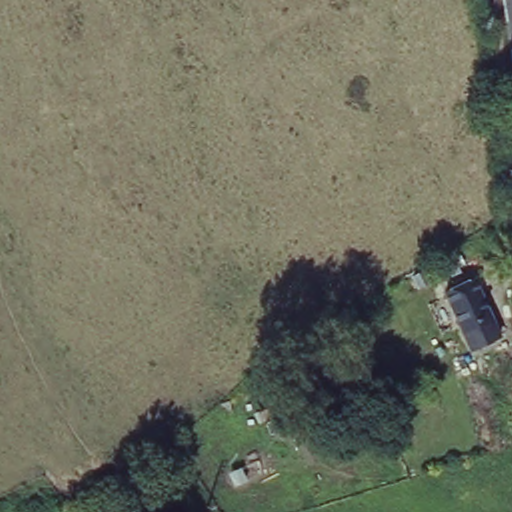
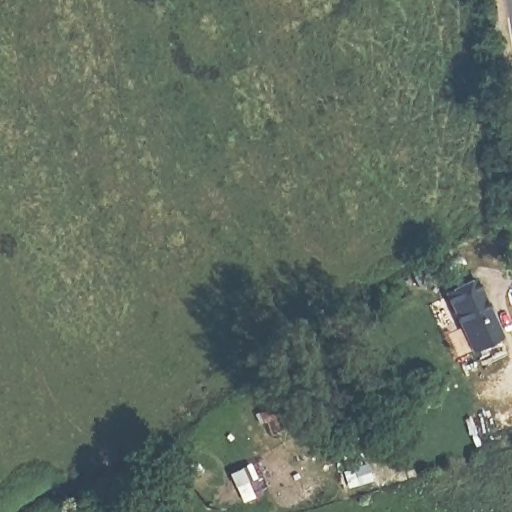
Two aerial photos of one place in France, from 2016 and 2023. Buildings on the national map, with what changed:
unchanged [(502,332),(473,344),(446,288),(476,274),(502,332)]

